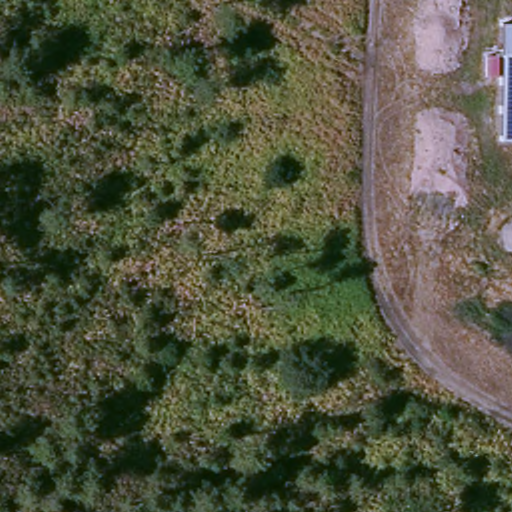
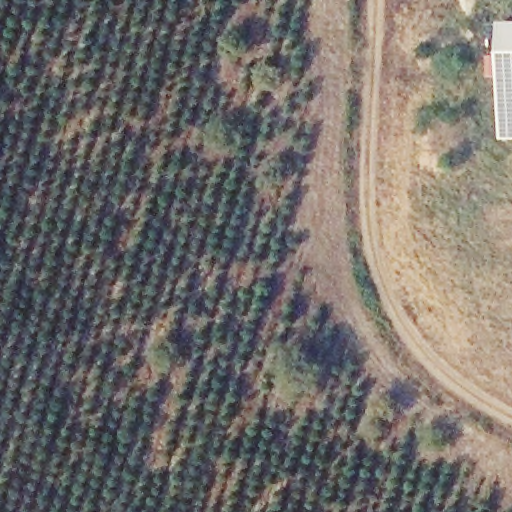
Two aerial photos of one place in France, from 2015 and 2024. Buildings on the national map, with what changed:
unchanged [(502,140),(502,23),(512,23),(512,140),(502,140)]

